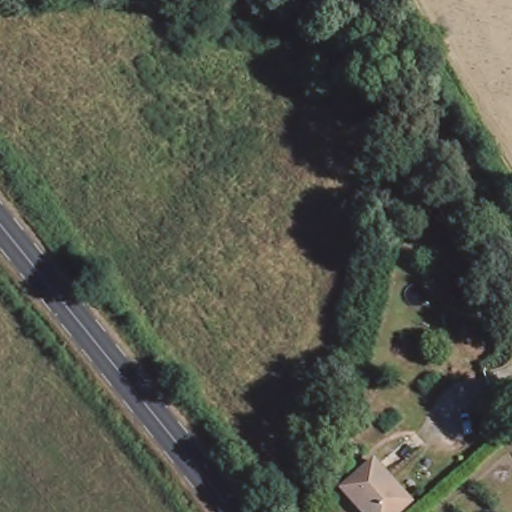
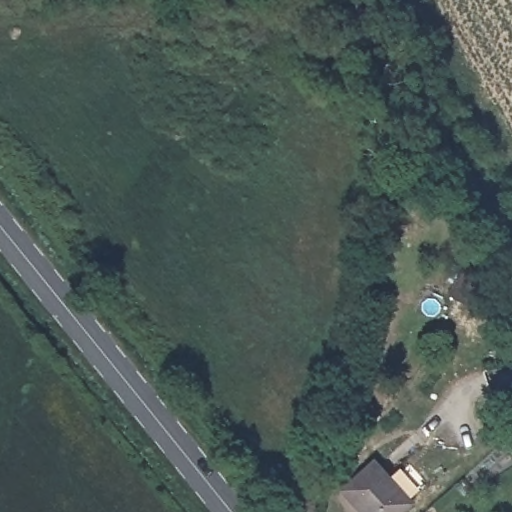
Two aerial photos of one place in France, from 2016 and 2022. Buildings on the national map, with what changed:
unchanged [(407,506),(400,512),(360,512),(341,489),(372,464),(407,506)]

